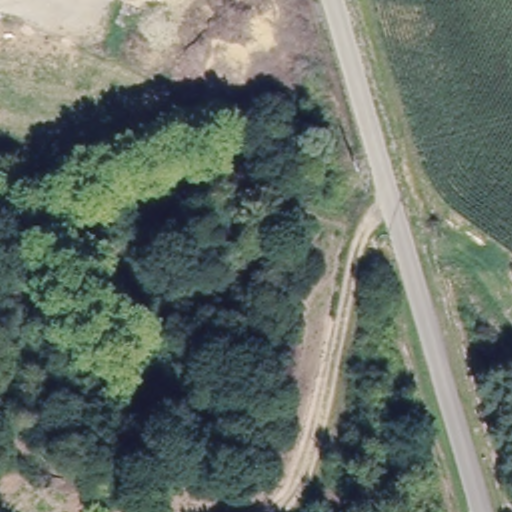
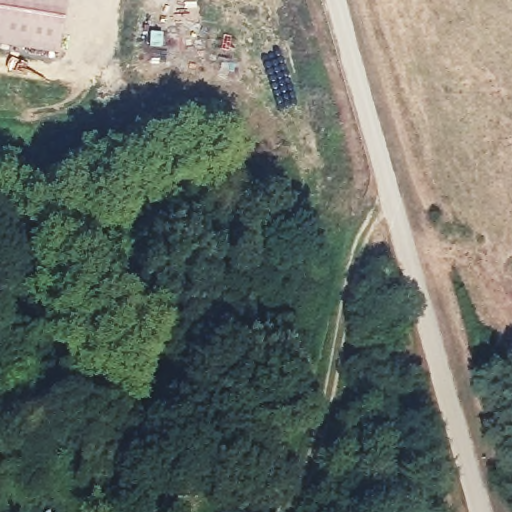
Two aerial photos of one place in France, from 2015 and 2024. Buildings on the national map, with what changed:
new [(56,57),(0,49),(0,0),(65,0),(56,57)]

